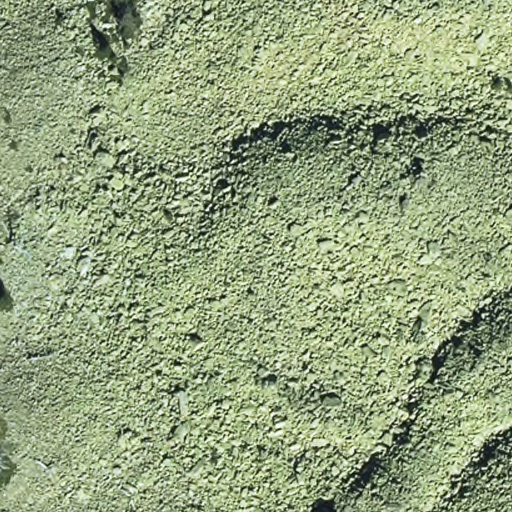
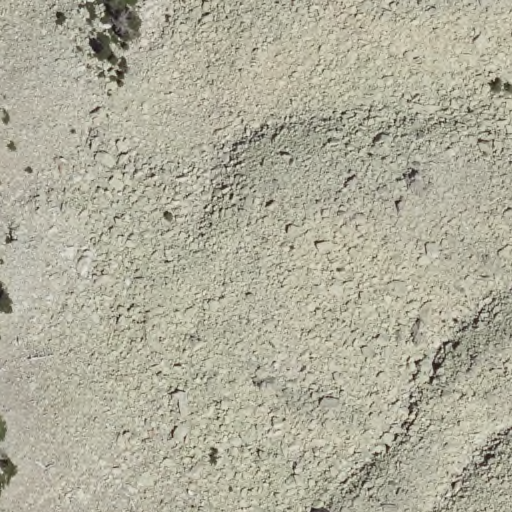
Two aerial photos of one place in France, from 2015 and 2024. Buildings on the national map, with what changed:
[]

